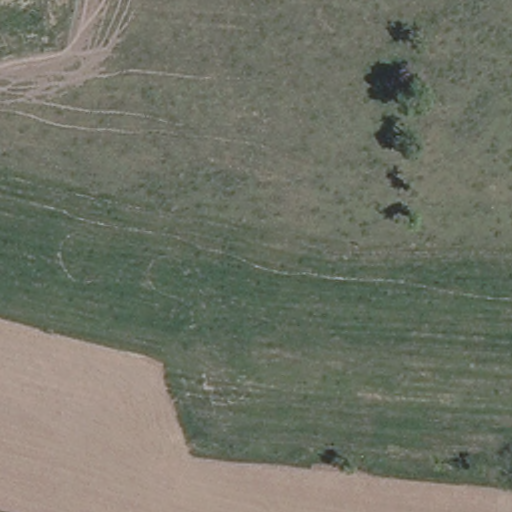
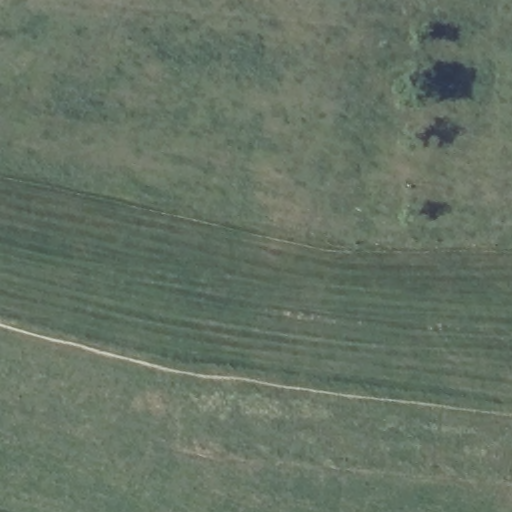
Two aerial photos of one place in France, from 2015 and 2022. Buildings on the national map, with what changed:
[]

